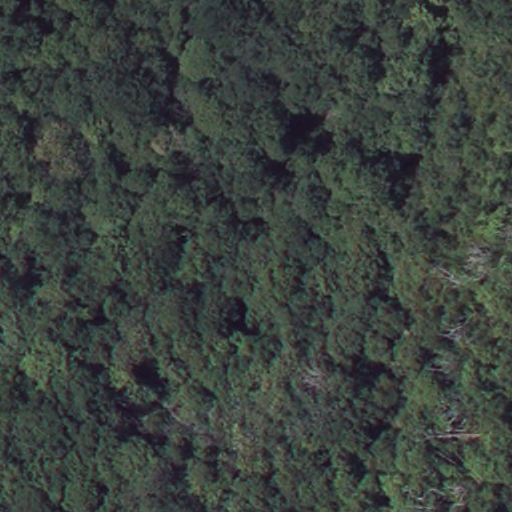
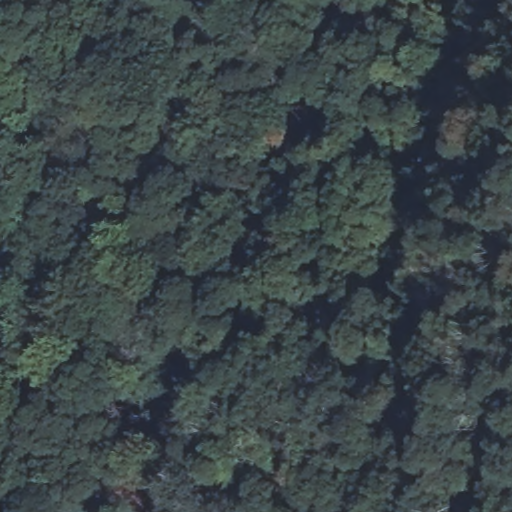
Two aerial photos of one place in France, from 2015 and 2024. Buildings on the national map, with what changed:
[]

